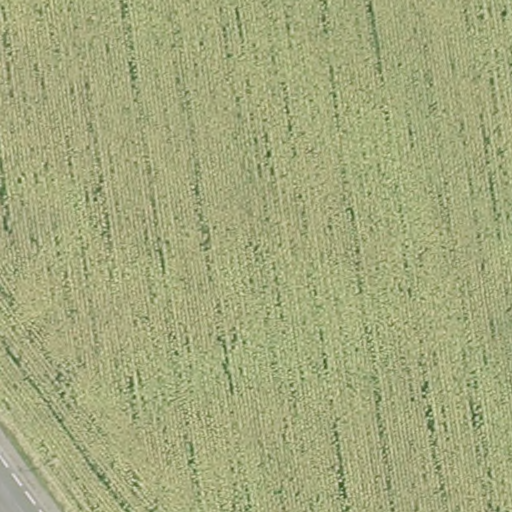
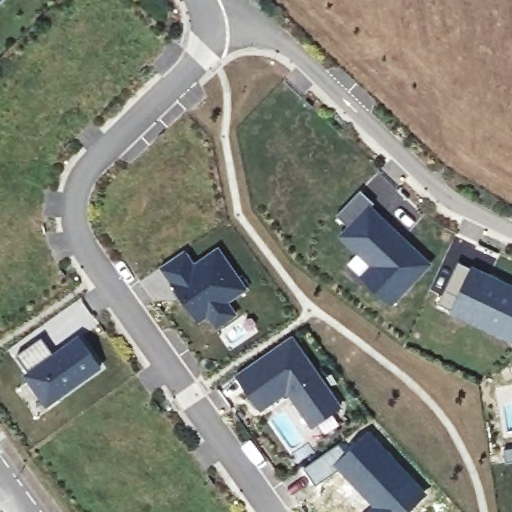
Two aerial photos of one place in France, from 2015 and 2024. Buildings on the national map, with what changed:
new [(0,0),(2,0),(0,2),(0,0)]
new [(360,191),(373,204),(371,206),(432,265),(390,307),(360,277),(369,267),(338,237),(349,226),(337,214),(360,191)]
new [(229,303),(237,315),(216,330),(207,317),(200,323),(159,268),(184,251),(195,263),(218,249),(248,289),(229,303)]
new [(438,304),(458,262),(475,271),(483,274),(512,288),(512,339),(498,332),(473,321),(438,304)]
new [(291,336),(343,407),(311,428),(286,395),(260,412),(233,376),(291,336)]
new [(41,338),(51,351),(44,355),(47,360),(79,338),(100,367),(46,406),(25,376),(28,373),(16,356),(41,338)]
new [(338,442),(346,451),(369,430),(428,492),(407,512),(366,512),(372,506),(337,467),(315,483),(303,468),(338,442)]

